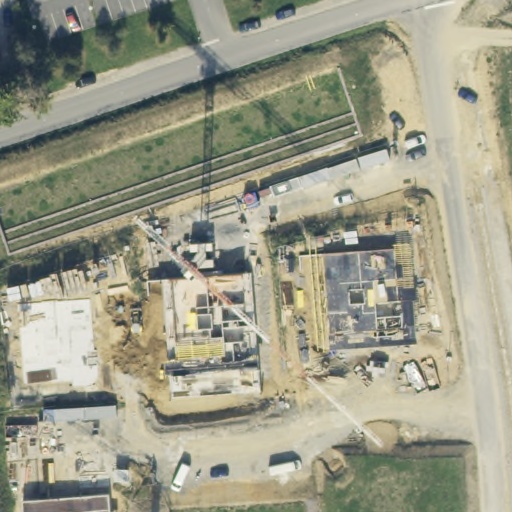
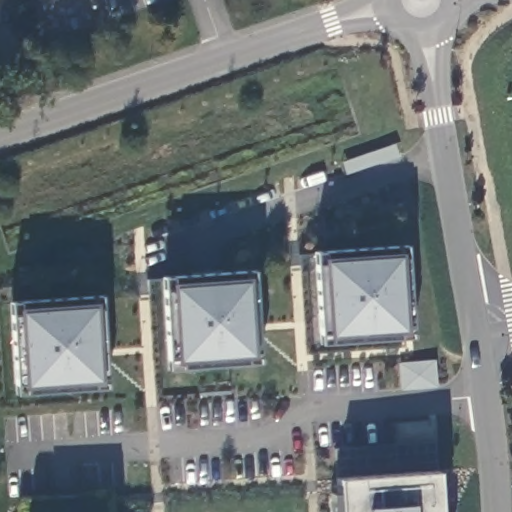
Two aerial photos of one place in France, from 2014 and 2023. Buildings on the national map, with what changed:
new [(405,331),(327,337),(321,258),(398,252),(405,331)]
new [(251,356),(176,361),(169,283),(247,277),(251,356)]
new [(99,381),(24,386),(17,308),(93,303),(99,381)]
new [(431,360),(432,384),(399,387),(397,362),(431,360)]
new [(332,512),(331,493),(339,492),(337,478),(437,471),(440,512),(332,512)]

